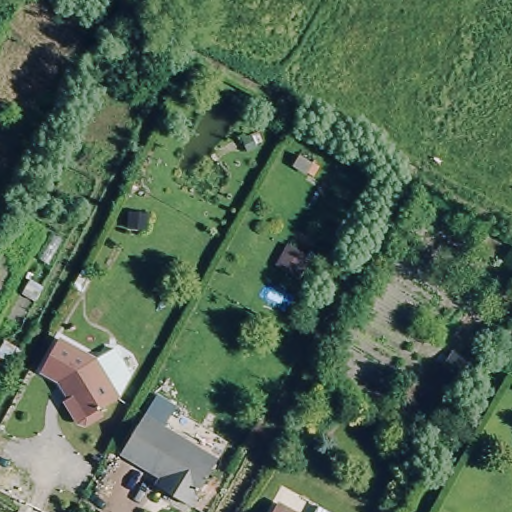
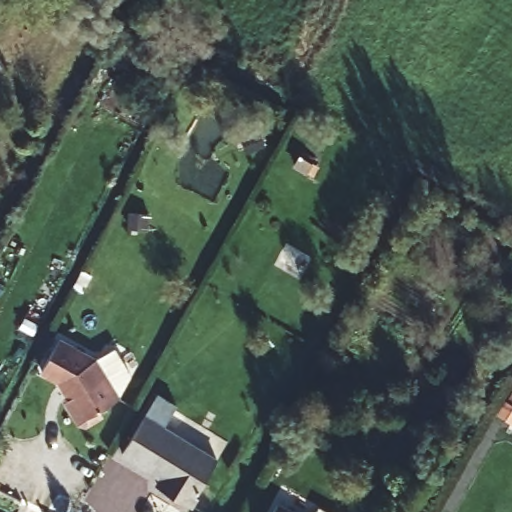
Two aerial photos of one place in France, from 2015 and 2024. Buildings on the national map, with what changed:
unchanged [(98,402),(102,407),(83,420),(75,416),(64,398),(70,394),(62,382),(39,370),(56,337),(91,354),(115,391),(98,402)]
unchanged [(194,501),(162,484),(165,477),(127,456),(147,417),(217,456),(194,501)]
unchanged [(277,507),(287,512),(274,512),(277,507)]

